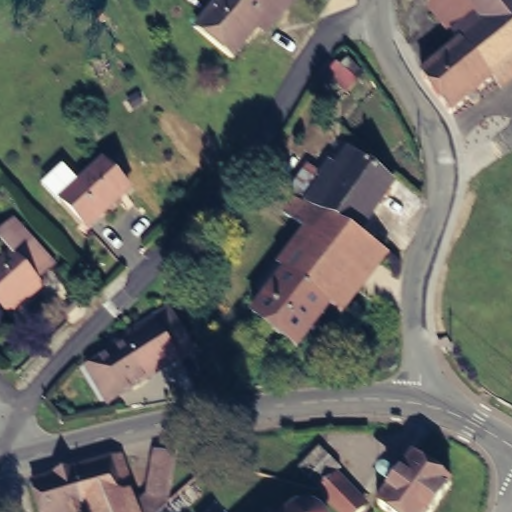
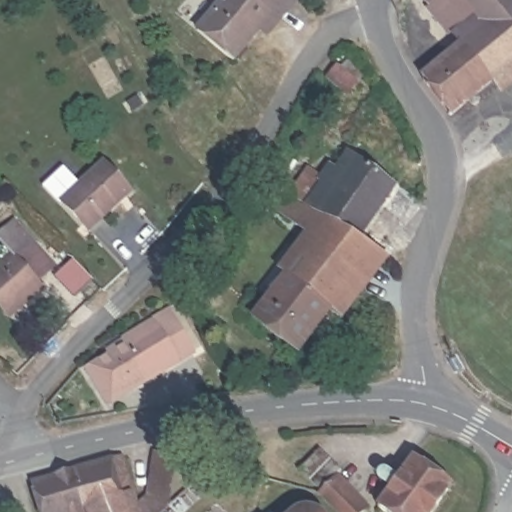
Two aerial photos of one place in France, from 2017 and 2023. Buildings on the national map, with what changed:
unchanged [(299,0),(238,70),(225,57),(205,37),(231,9),(230,8),(221,1),(220,0),(299,0)]
unchanged [(452,121),(423,85),(463,50),(462,49),(420,0),(512,0),(512,72),(452,121)]
unchanged [(362,81),(349,94),(327,76),(339,62),(362,81)]
unchanged [(103,161),(127,190),(82,225),(59,195),(103,161)]
unchanged [(402,191),(365,240),(316,212),(330,191),(339,195),(342,189),(330,182),(337,172),(351,181),(364,165),(402,191)]
unchanged [(300,358),(257,327),(322,246),(285,220),(297,206),(314,215),(382,253),(300,358)]
unchanged [(42,282),(12,256),(14,254),(0,239),(0,236),(17,220),(39,243),(59,264),(55,267),(42,282)]
unchanged [(0,267),(12,256),(42,282),(47,286),(16,314),(14,311),(9,315),(0,307),(0,267)]
unchanged [(193,358),(107,406),(90,375),(127,353),(123,346),(172,318),(193,358)]
unchanged [(134,505),(150,499),(159,449),(179,449),(167,504),(160,512),(136,512),(134,505)]
unchanged [(322,450),(342,469),(320,490),(300,472),(322,450)]
unchanged [(32,481),(121,455),(134,492),(130,494),(134,505),(136,512),(40,512),(32,481)]
unchanged [(455,485),(435,512),(392,512),(382,504),(420,458),(455,485)]
unchanged [(320,490),(338,477),(370,506),(364,512),(344,512),(325,494),(320,490)]
unchanged [(320,512),(284,512),(288,508),(297,504),(310,504),(318,509),(320,512)]

